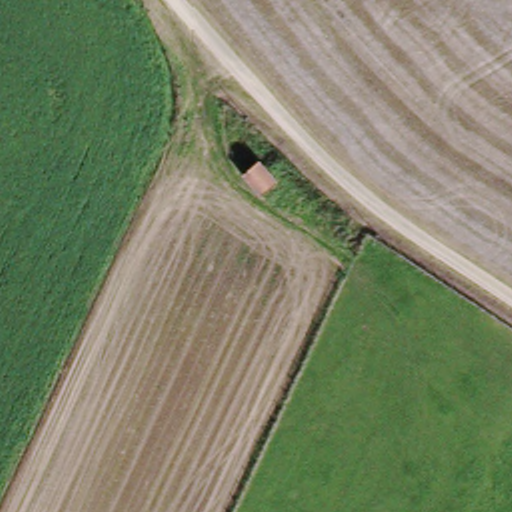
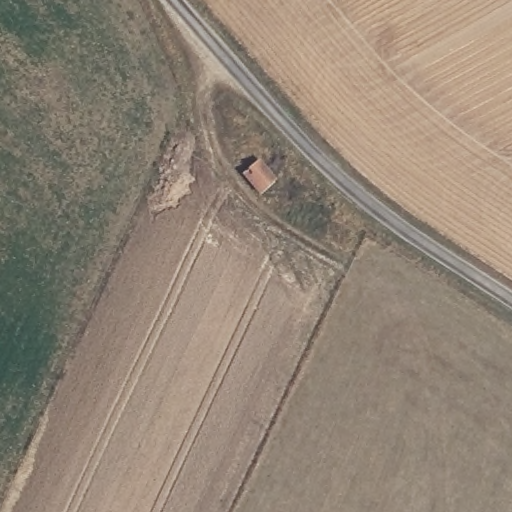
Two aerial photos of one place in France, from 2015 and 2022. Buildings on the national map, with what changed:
unchanged [(248,175),(263,160),(278,176),(263,191),(248,175)]

